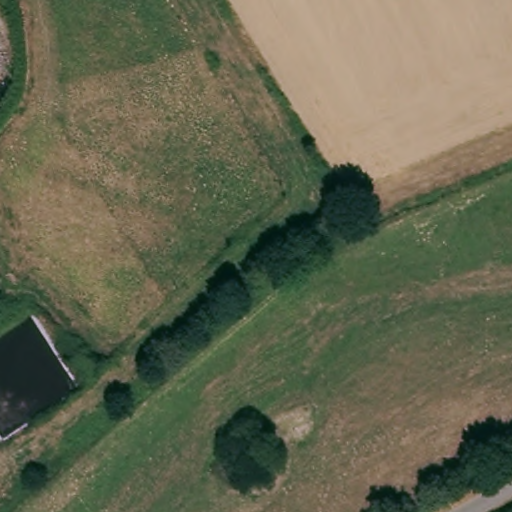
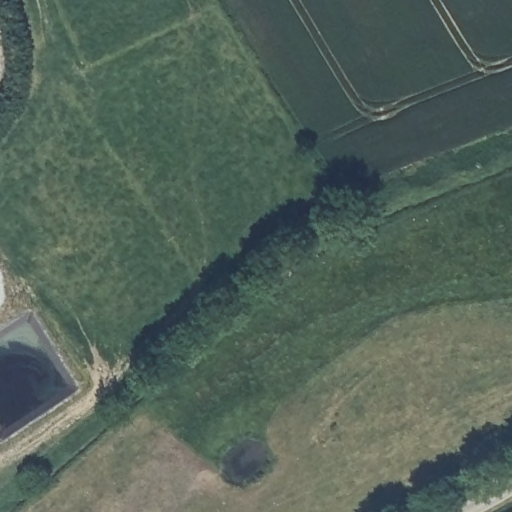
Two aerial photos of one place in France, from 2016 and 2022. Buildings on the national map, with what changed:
[]

